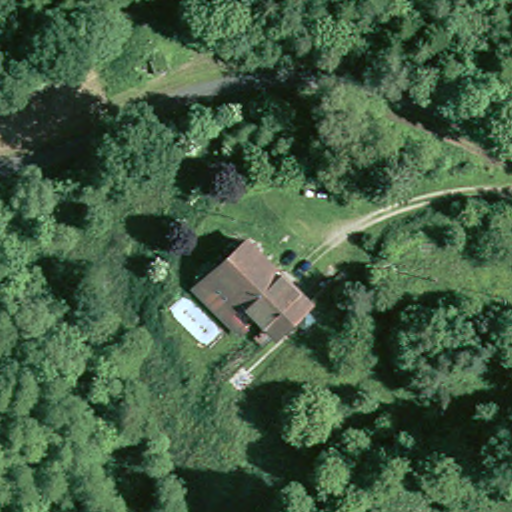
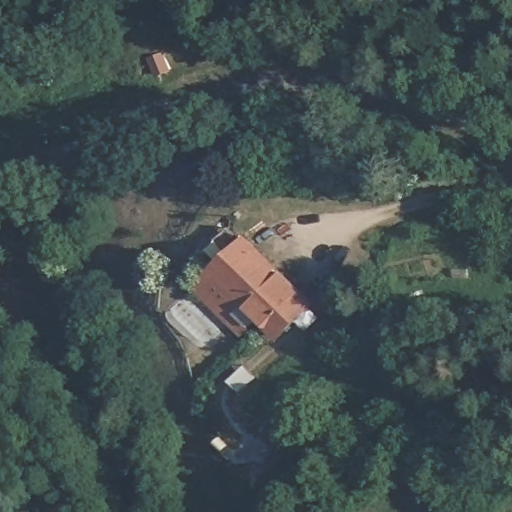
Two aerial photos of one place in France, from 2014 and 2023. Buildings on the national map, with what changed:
unchanged [(317,301),(279,338),(249,312),(230,326),(195,287),(250,235),(317,301)]

